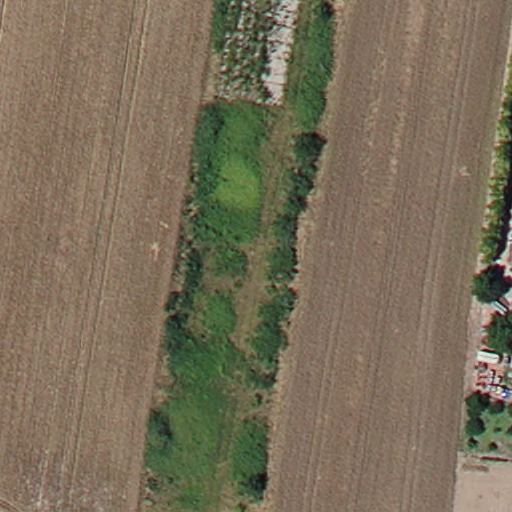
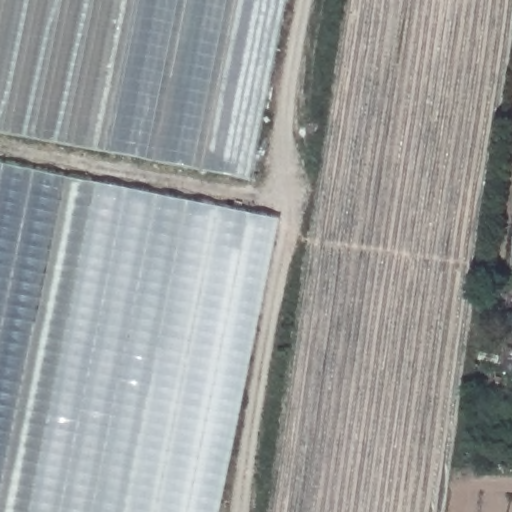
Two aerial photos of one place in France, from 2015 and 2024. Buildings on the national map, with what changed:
new [(251,180),(0,132),(0,0),(287,0),(251,180)]
new [(281,219),(222,512),(0,512),(0,162),(281,219)]
unchanged [(512,219),(512,264),(505,263),(512,219)]

